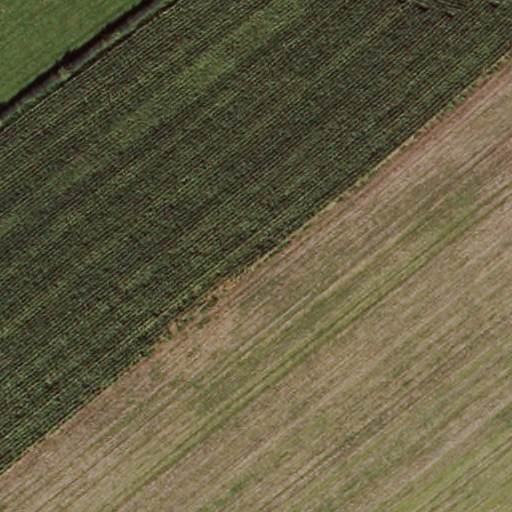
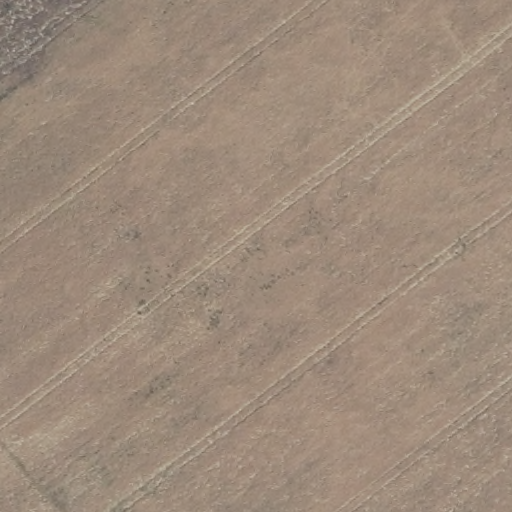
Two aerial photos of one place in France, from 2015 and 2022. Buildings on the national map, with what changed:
[]

